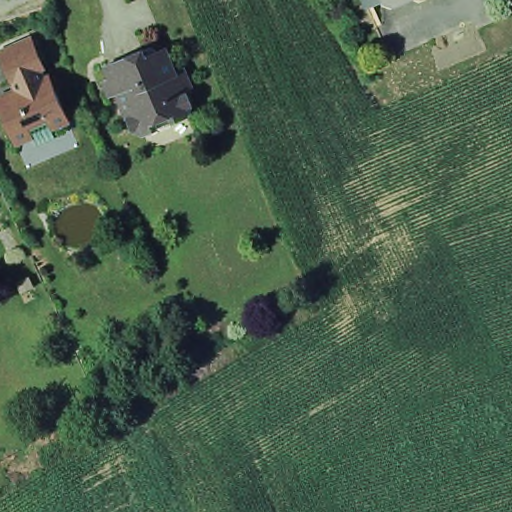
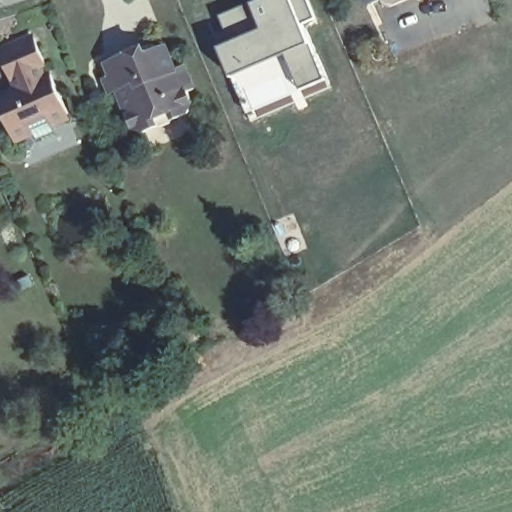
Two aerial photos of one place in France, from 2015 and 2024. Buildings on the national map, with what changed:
new [(227,18),(265,2),(264,0),(309,0),(317,19),(304,25),(327,79),(249,112),(218,39),(232,32),(227,18)]
unchanged [(37,36),(49,62),(44,64),(49,76),(54,74),(72,116),(54,123),(59,136),(43,142),(38,131),(20,138),(4,94),(25,87),(19,75),(15,77),(4,50),(37,36)]
unchanged [(143,49),(147,56),(173,45),(182,67),(192,64),(200,86),(194,87),(199,99),(195,112),(182,117),(180,112),(164,119),(165,125),(151,130),(140,125),(125,86),(115,89),(110,74),(120,71),(115,61),(143,49)]
unchanged [(0,174),(0,169),(2,174),(0,174)]

